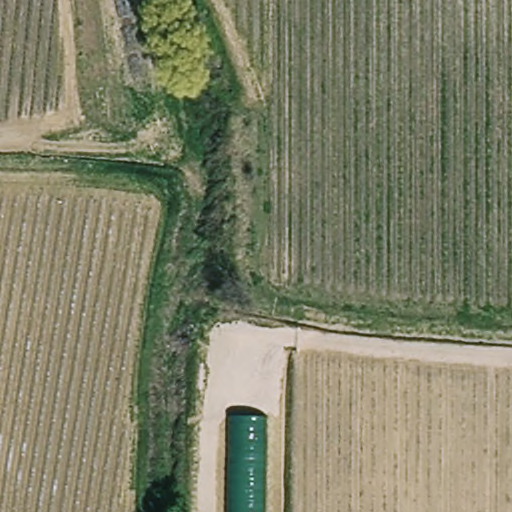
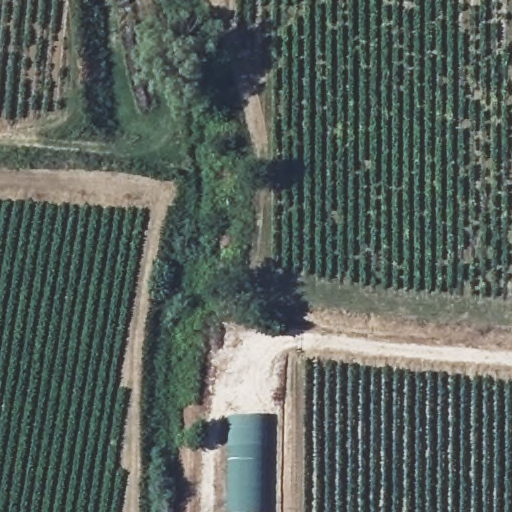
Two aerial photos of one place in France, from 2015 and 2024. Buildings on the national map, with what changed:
unchanged [(235,419),(267,419),(263,512),(232,512),(235,419)]

